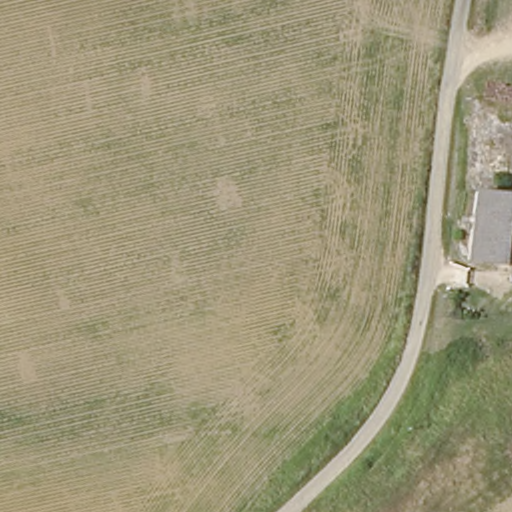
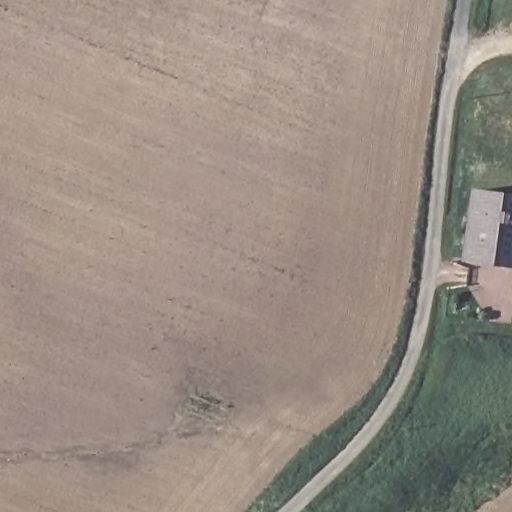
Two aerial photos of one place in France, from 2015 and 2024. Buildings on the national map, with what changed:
unchanged [(464,263),(480,190),(509,196),(512,196),(512,269),(464,263)]

